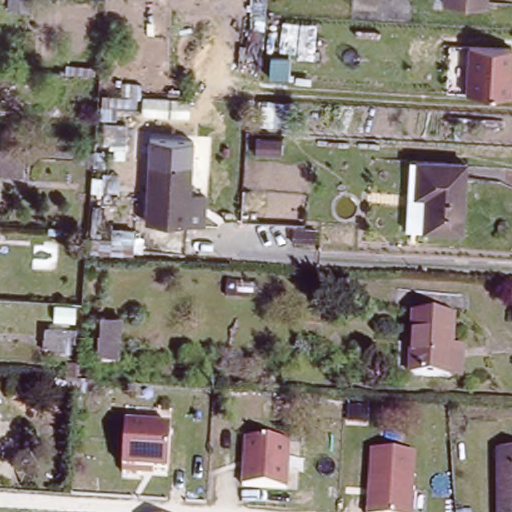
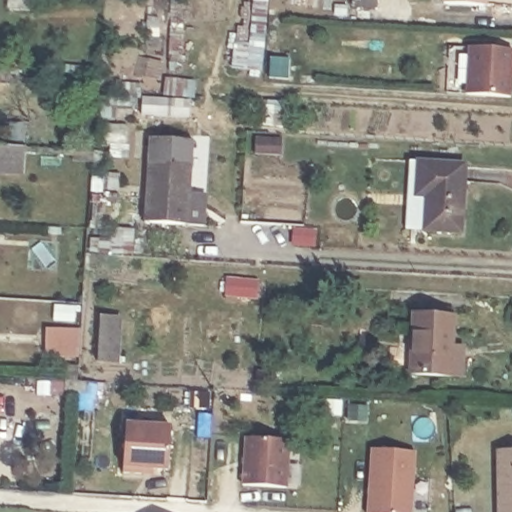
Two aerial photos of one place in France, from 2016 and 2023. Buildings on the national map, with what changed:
unchanged [(7,11),(8,0),(27,0),(27,12),(7,11)]
unchanged [(444,1),(444,0),(485,0),(485,4),(444,1)]
unchanged [(510,48),(507,96),(464,92),(465,45),(510,48)]
unchanged [(10,69),(10,84),(0,84),(0,69),(10,69)]
unchanged [(140,81),(140,96),(134,96),(131,123),(124,123),(124,144),(102,143),(105,80),(140,81)]
unchanged [(22,150),(20,177),(0,175),(0,149),(22,150)]
unchanged [(192,162),(188,224),(145,222),(149,159),(192,162)]
unchanged [(461,233),(424,231),(407,230),(412,161),(419,161),(466,164),(461,233)]
unchanged [(120,163),(119,192),(114,192),(112,218),(106,218),(105,236),(114,238),(115,225),(135,228),(132,253),(86,251),(92,163),(120,163)]
unchanged [(257,281),(257,295),(229,293),(230,278),(257,281)]
unchanged [(463,378),(450,377),(410,374),(414,313),(452,316),(451,349),(464,350),(463,378)]
unchanged [(119,325),(116,368),(95,367),(97,324),(119,325)]
unchanged [(62,327),(60,351),(43,349),(45,326),(62,327)]
unchanged [(171,424),(169,474),(122,469),(124,420),(171,424)]
unchanged [(289,440),(285,486),(239,483),(242,435),(289,440)]
unchanged [(414,451),(410,512),(363,512),(370,448),(414,451)]
unchanged [(512,512),(499,512),(499,448),(512,448),(512,512)]

